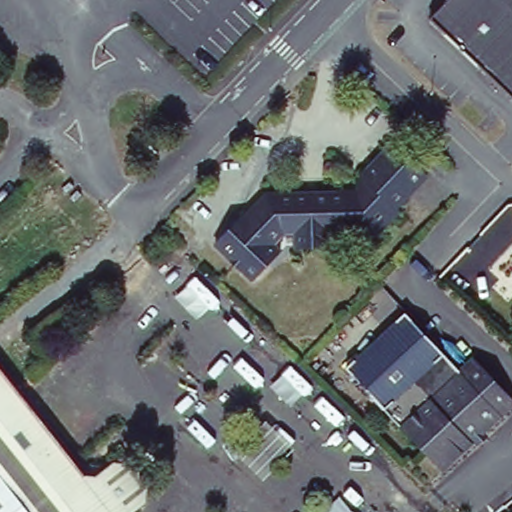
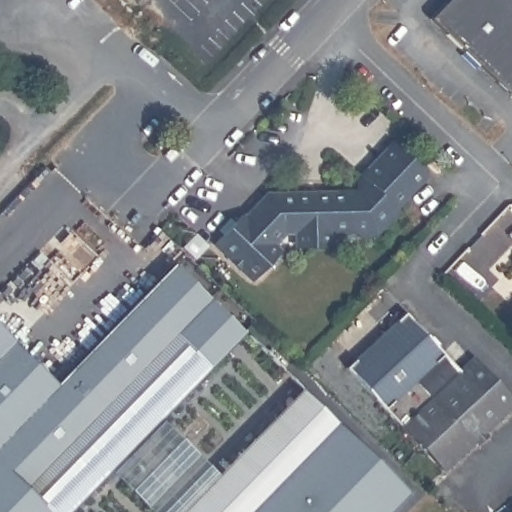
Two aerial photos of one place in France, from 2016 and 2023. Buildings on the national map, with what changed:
unchanged [(438,0),(512,0),(512,97),(423,17),(438,0)]
unchanged [(398,201),(400,207),(374,234),(355,232),(353,229),(326,234),(323,247),(308,250),(297,244),(296,232),(284,235),(273,246),(280,252),(257,279),(229,251),(225,254),(215,245),(260,194),(348,186),(393,135),(431,165),(398,201)]
unchanged [(512,266),(512,272),(509,270),(512,266)]
new [(171,267),(241,332),(157,422),(213,476),(301,388),(407,492),(388,512),(151,512),(109,471),(69,512),(0,512),(0,330),(55,383),(171,267)]
unchanged [(445,473),(402,428),(346,367),(407,312),(463,367),(473,357),(506,389),(512,395),(512,407),(508,410),(445,473)]
demolished [(40,423),(10,455),(0,444),(0,378),(40,423)]
demolished [(133,462),(130,472),(145,474),(155,485),(125,511),(125,512),(66,512),(10,455),(40,423),(86,476),(120,448),(133,462)]
demolished [(10,455),(66,512),(0,512),(0,444),(10,455)]

